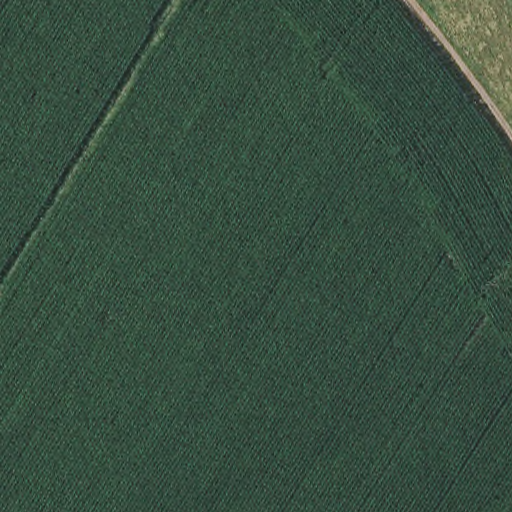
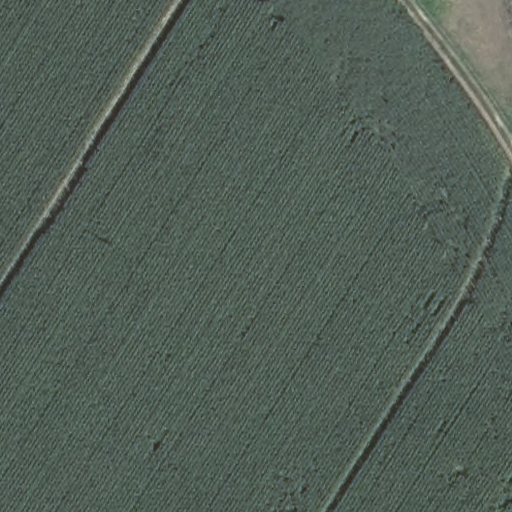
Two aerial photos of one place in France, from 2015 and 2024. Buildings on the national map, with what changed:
[]

